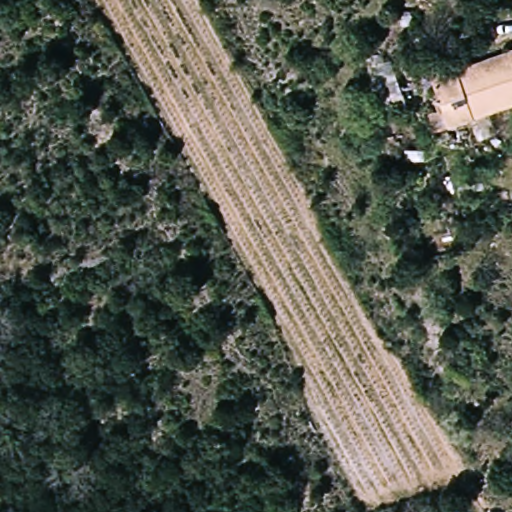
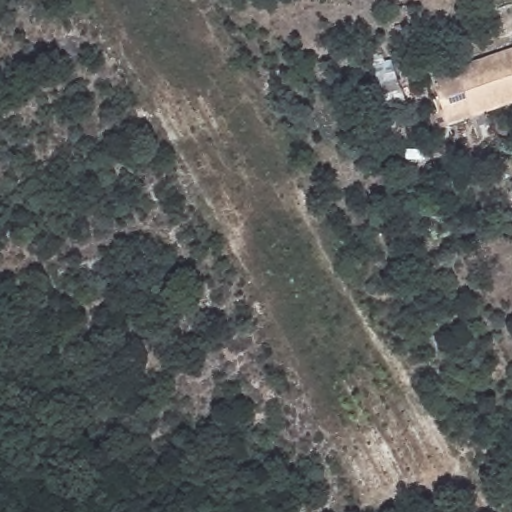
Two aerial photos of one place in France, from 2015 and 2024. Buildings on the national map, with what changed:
unchanged [(452,127),(433,131),(431,112),(441,110),(433,77),(512,50),(512,107),(452,127)]

